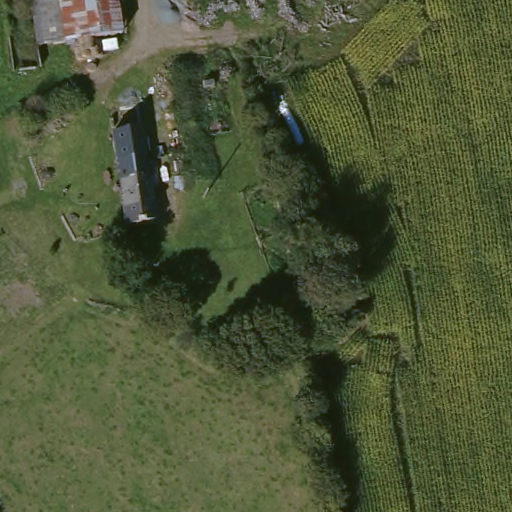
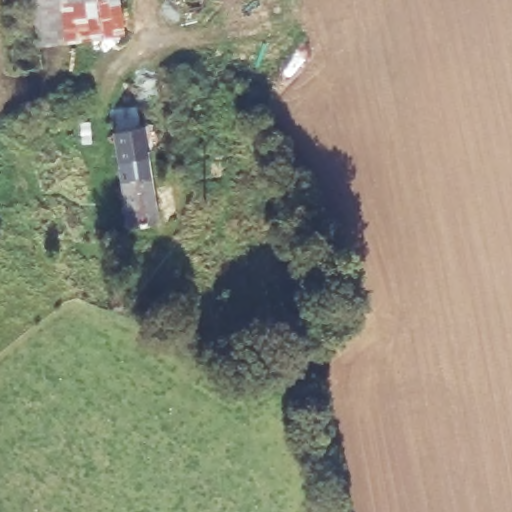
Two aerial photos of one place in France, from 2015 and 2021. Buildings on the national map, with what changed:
unchanged [(118,0),(123,37),(37,50),(39,71),(16,74),(7,0),(118,0)]
unchanged [(111,128),(143,123),(156,228),(125,231),(111,128)]

